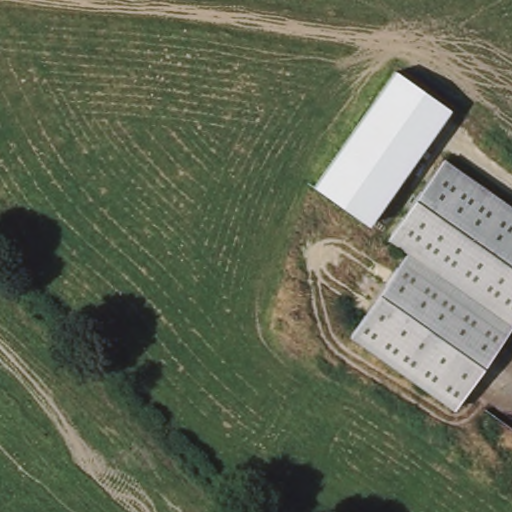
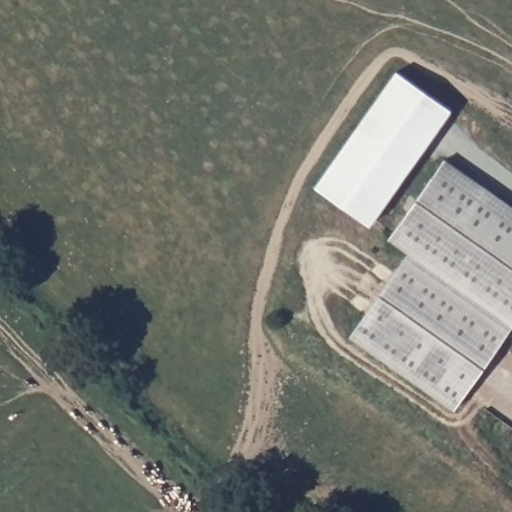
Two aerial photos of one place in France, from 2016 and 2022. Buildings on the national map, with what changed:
unchanged [(369,225),(313,186),(395,71),(451,110),(369,225)]
unchanged [(459,409),(356,337),(414,254),(394,240),(449,161),(512,206),(512,333),(459,409)]

